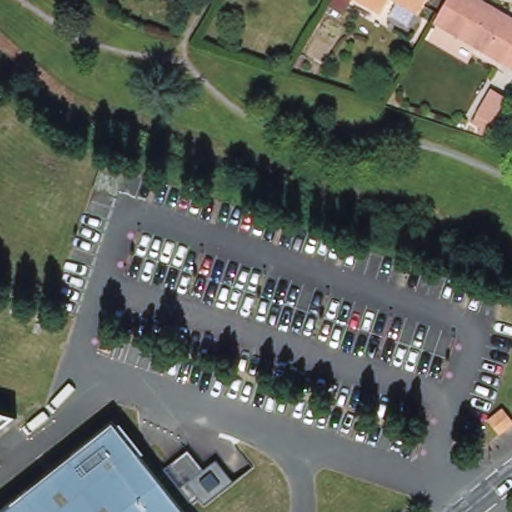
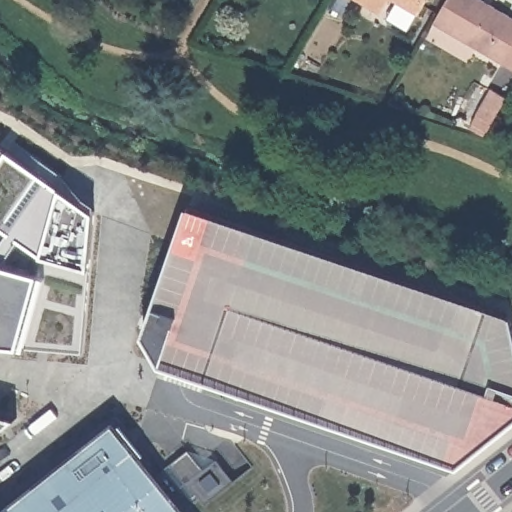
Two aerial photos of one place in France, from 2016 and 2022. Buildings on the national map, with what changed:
unchanged [(391,2),(382,16),(353,0),(431,0),(421,18),(391,2)]
unchanged [(505,65),(435,25),(449,0),(480,0),(512,18),(512,51),(505,65)]
unchanged [(470,121),(489,88),(505,97),(485,131),(470,121)]
new [(61,187),(94,211),(90,270),(81,350),(21,345),(0,344),(0,159),(8,149),(61,187)]
new [(511,316),(512,322),(512,424),(459,467),(162,364),(145,333),(188,205),(511,316)]
demolished [(492,421),(487,414),(502,403),(512,417),(512,420),(508,423),(498,431),(492,421)]
unchanged [(0,428),(0,415),(12,419),(0,428)]
unchanged [(184,512),(8,512),(114,428),(184,512)]

